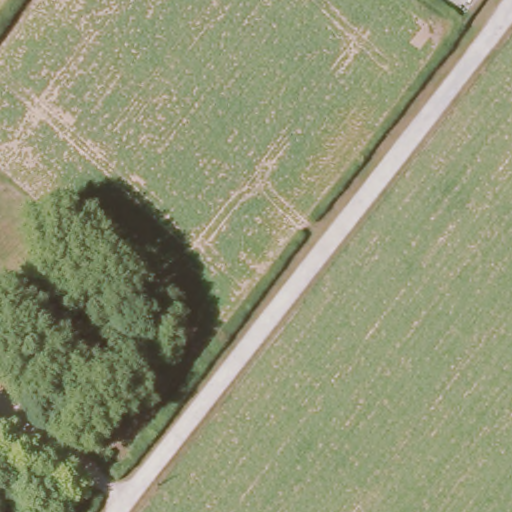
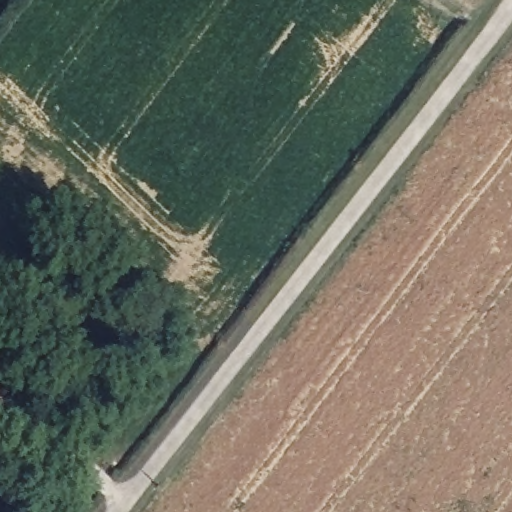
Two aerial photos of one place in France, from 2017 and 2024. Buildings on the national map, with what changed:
[]

